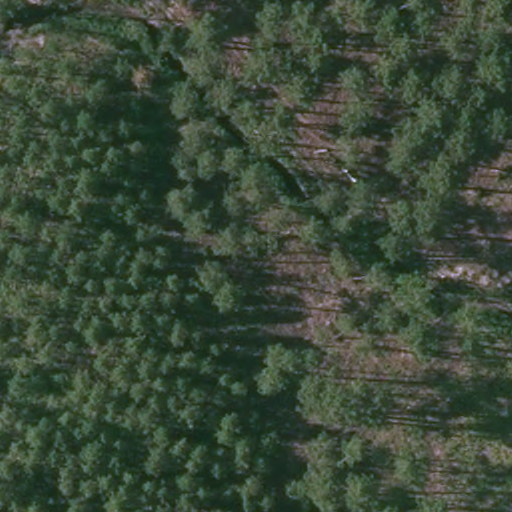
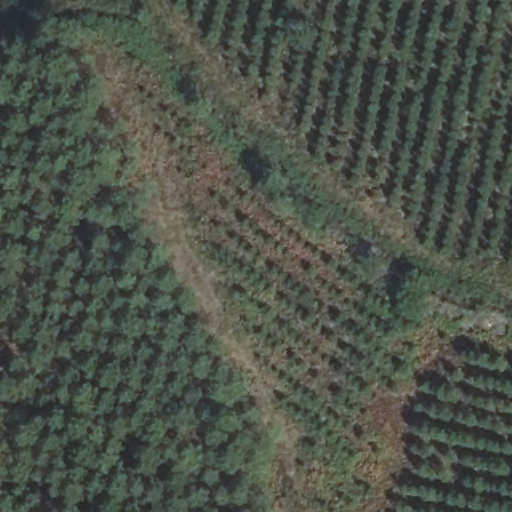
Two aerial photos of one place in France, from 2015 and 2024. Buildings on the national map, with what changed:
[]

